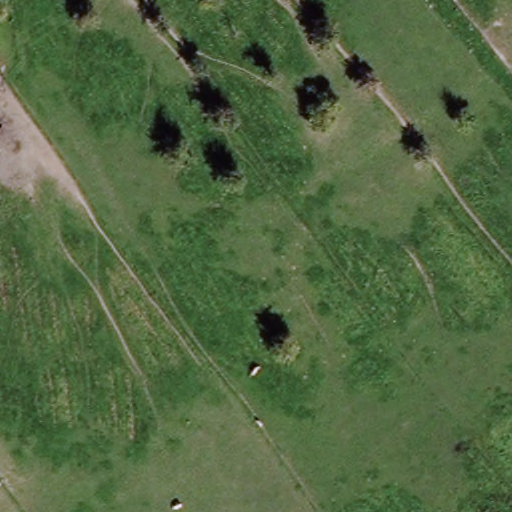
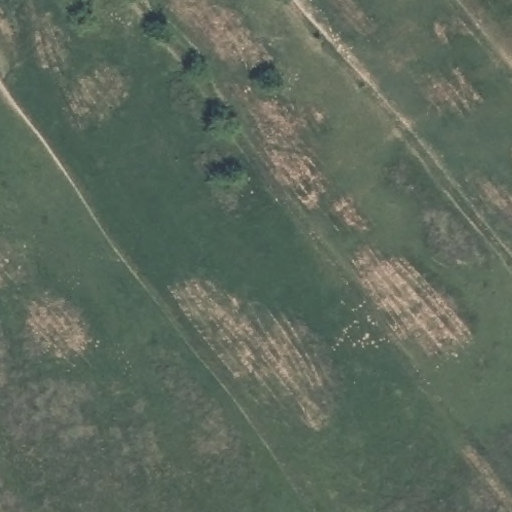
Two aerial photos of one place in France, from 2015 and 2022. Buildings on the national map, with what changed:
[]

